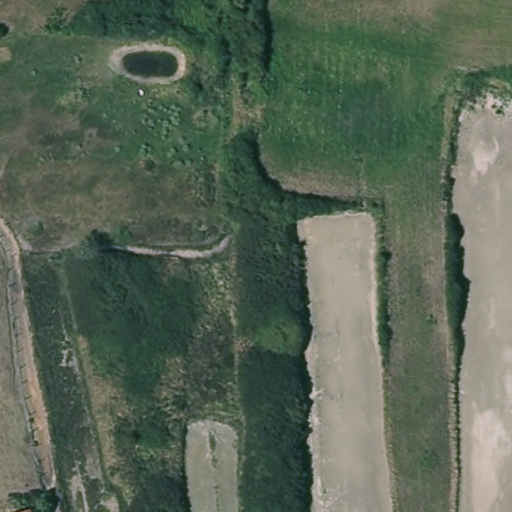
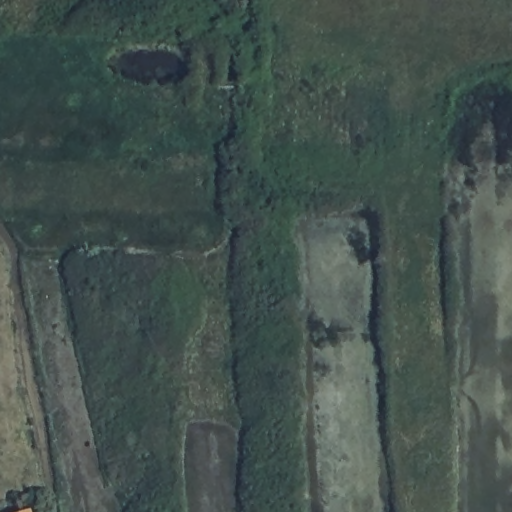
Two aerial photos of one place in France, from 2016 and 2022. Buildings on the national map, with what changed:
unchanged [(35,509),(35,512),(23,512),(35,509)]

